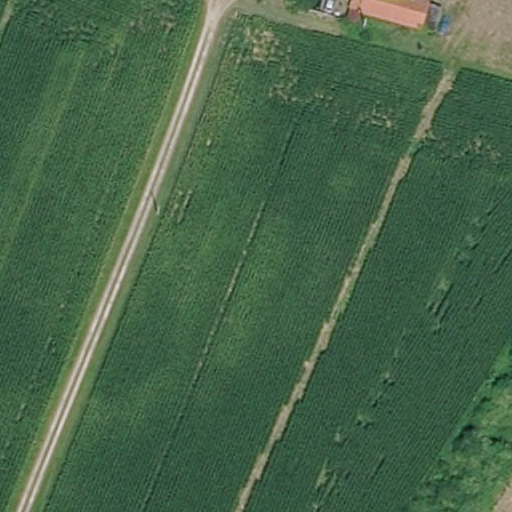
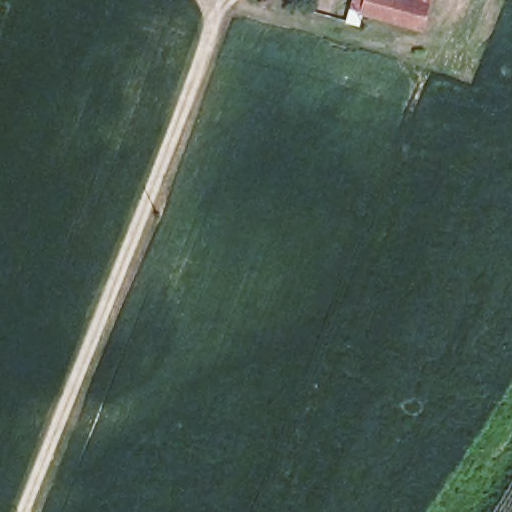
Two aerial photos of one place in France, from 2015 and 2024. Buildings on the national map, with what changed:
unchanged [(443,9),(439,25),(428,23),(424,33),(361,15),(361,13),(347,9),(350,0),(431,0),(431,5),(443,9)]

